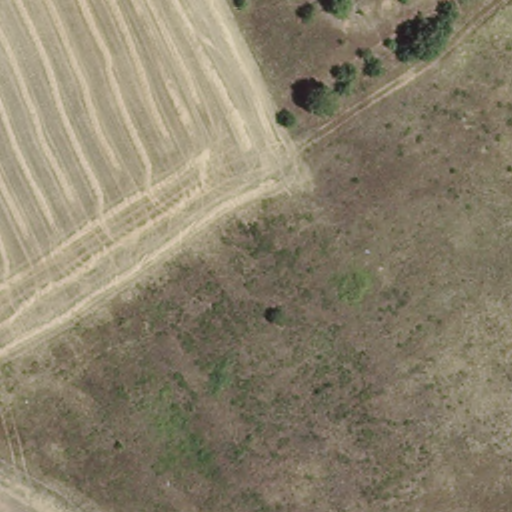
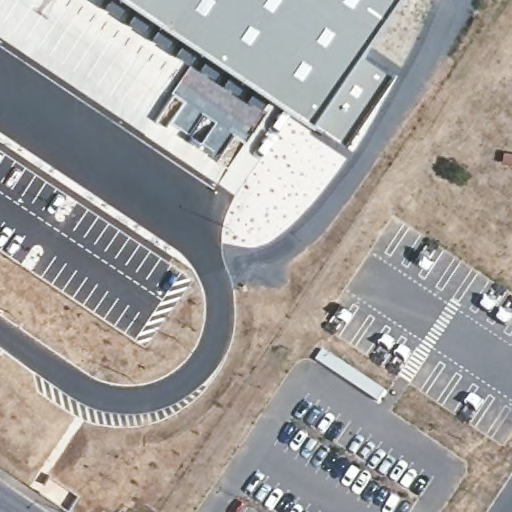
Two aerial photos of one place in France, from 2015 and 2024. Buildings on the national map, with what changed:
new [(348,47),(382,68),(362,104),(338,141),(275,103),(200,52),(124,0),(379,0),(348,47)]

